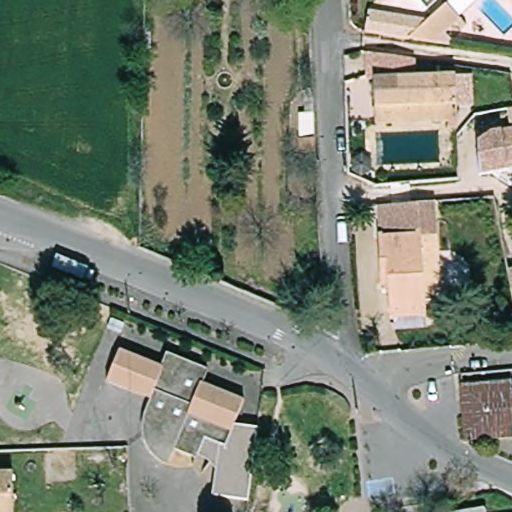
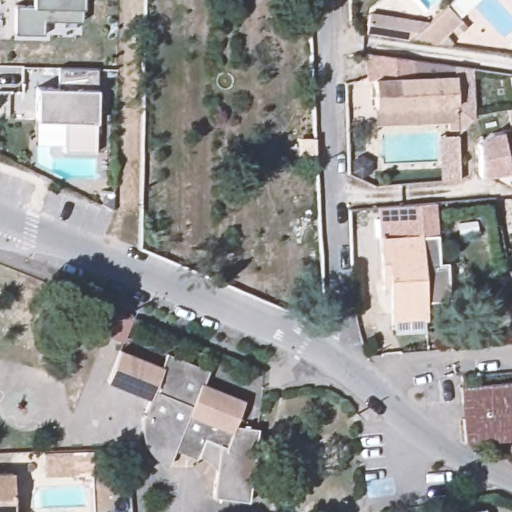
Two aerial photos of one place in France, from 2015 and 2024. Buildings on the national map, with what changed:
new [(42,34),(15,34),(15,6),(32,5),(32,0),(82,0),(82,6),(80,20),(42,19),(42,34)]
unchanged [(460,20),(436,43),(411,40),(367,34),(370,14),(429,22),(447,6),(460,20)]
unchanged [(415,75),(456,73),(457,101),(376,105),(374,50),(395,52),(414,55),(415,75)]
new [(63,121),(36,120),(36,86),(57,86),(58,67),(97,69),(96,88),(96,121),(96,152),(64,152),(63,121)]
unchanged [(457,101),(457,116),(376,120),(376,105),(457,101)]
unchanged [(313,119),(296,119),(296,106),(312,106),(313,119)]
unchanged [(461,157),(478,156),(477,144),(493,134),(512,130),(512,168),(509,169),(509,171),(480,177),(463,179),(461,162),(461,157)]
unchanged [(436,250),(437,250),(441,316),(426,317),(427,332),(392,335),(390,301),(383,302),(380,254),(381,254),(379,224),(434,220),(436,250)]
unchanged [(200,452),(198,458),(175,450),(168,465),(163,462),(158,459),(154,455),(150,450),(147,445),(145,438),(144,433),(143,427),(144,421),(145,415),(147,409),(150,403),(152,400),(109,383),(121,352),(163,369),(169,355),(208,371),(202,385),(245,402),(234,427),(260,430),(250,503),(215,500),(219,470),(212,459),(200,452)]
unchanged [(512,393),(512,438),(510,438),(461,440),(457,382),(507,377),(509,393),(512,393)]
unchanged [(14,512),(0,512),(0,475),(14,475),(14,512)]
unchanged [(481,512),(462,512),(481,509),(481,512)]

